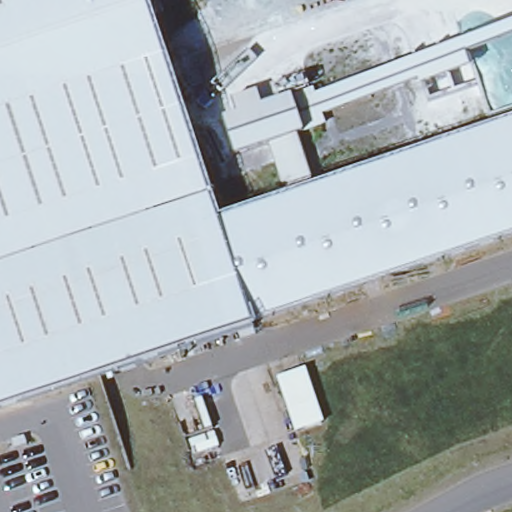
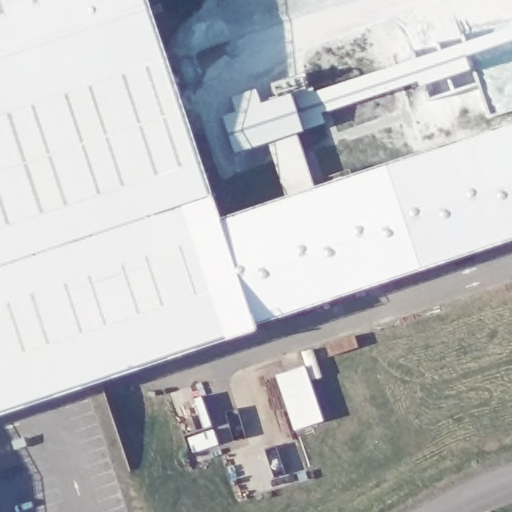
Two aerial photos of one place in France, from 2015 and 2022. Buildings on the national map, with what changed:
unchanged [(283,207),(263,146),(230,157),(218,121),(307,92),(318,127),(293,136),(313,197),(512,131),(512,236),(247,324),(248,330),(0,412),(0,0),(140,0),(215,230),(283,207)]
unchanged [(327,419),(295,430),(276,373),(305,363),(327,419)]

